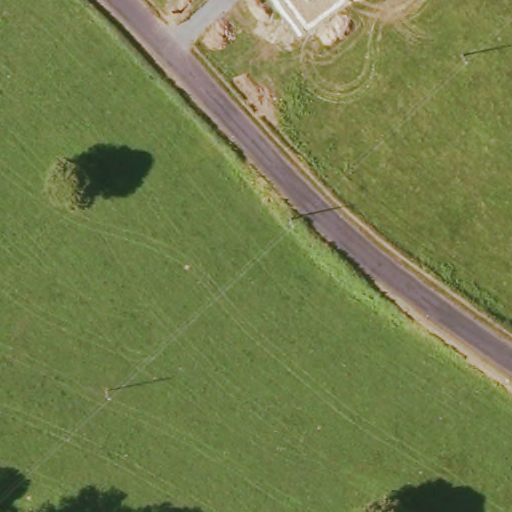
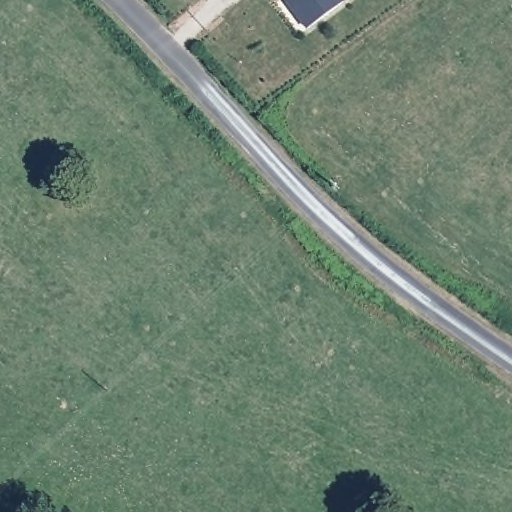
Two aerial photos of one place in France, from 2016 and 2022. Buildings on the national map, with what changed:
new [(342,0),(342,1),(305,30),(282,0),(342,0)]

